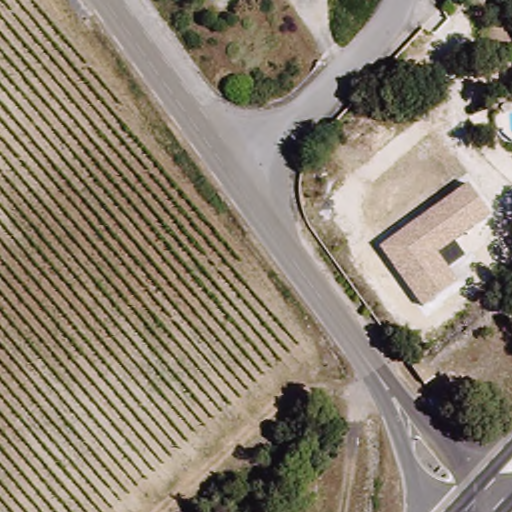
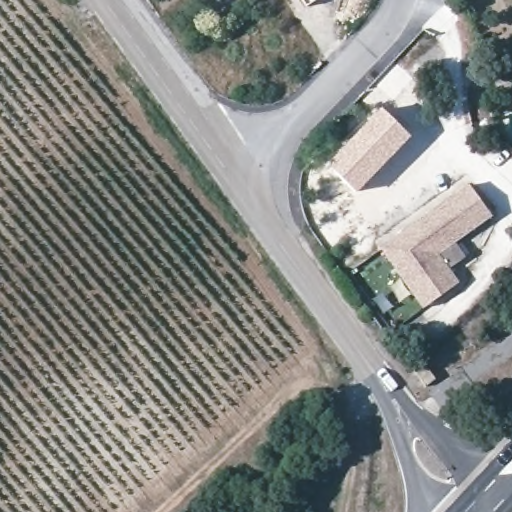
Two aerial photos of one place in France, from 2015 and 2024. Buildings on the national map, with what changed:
new [(302,0),(316,0),(307,6),(302,0)]
new [(381,107),(411,137),(356,193),(328,163),(381,107)]
unchanged [(382,246),(469,184),(492,215),(438,254),(458,282),(423,306),(382,246)]
unchanged [(422,364),(433,380),(423,386),(413,370),(422,364)]

